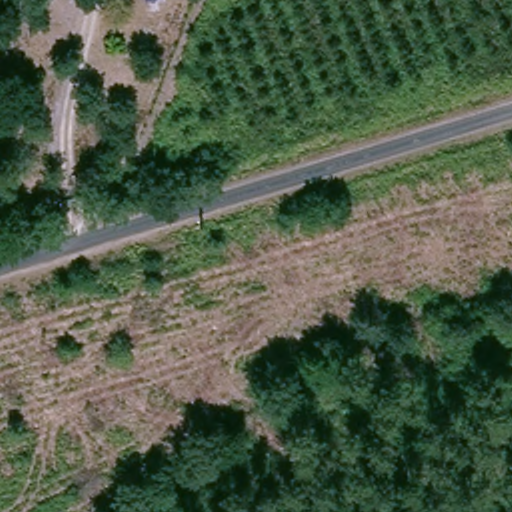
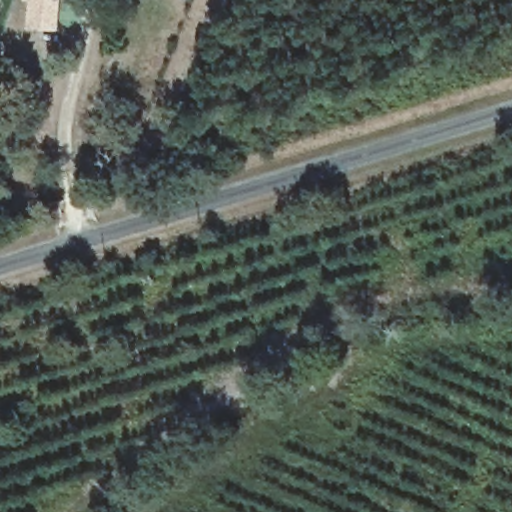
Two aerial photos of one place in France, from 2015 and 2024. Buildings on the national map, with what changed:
new [(29,30),(31,0),(62,0),(60,33),(29,30)]

